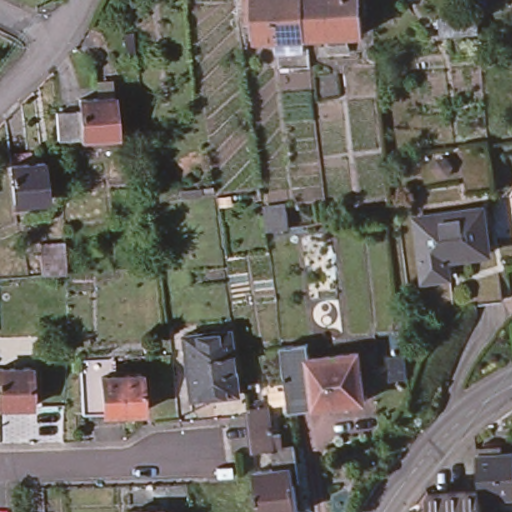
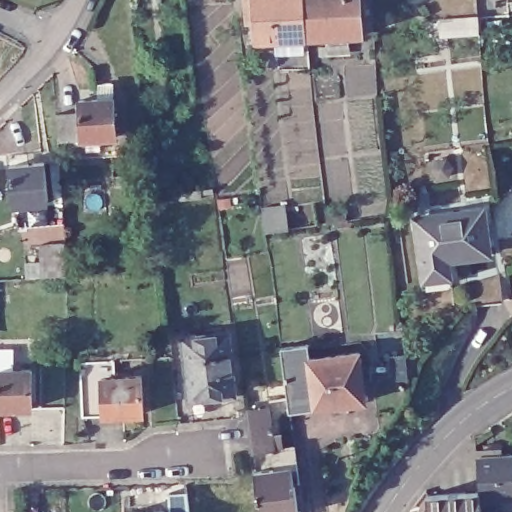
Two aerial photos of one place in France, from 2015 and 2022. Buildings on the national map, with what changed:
unchanged [(260,43),(256,0),(306,0),(308,30),(309,40),(260,43)]
unchanged [(308,30),(306,0),(359,0),(362,35),(309,40),(308,30)]
unchanged [(480,0),(512,0),(512,5),(480,8),(480,0)]
unchanged [(82,101),(116,100),(118,139),(83,140),(60,142),(57,115),(82,114),(82,101)]
unchanged [(48,161),(50,202),(16,205),(13,164),(48,161)]
unchanged [(487,207),(493,250),(450,256),(453,273),(425,276),(417,217),(487,207)]
unchanged [(494,271),(497,298),(470,303),(467,276),(494,271)]
unchanged [(232,333),(240,393),(195,399),(187,341),(232,333)]
unchanged [(308,376),(306,359),(356,351),(363,398),(312,406),(288,410),(284,379),(308,376)]
unchanged [(36,367),(37,405),(2,405),(2,368),(36,367)]
unchanged [(115,385),(117,420),(95,422),(92,371),(127,368),(128,383),(115,385)]
unchanged [(155,381),(155,418),(117,420),(115,385),(128,383),(155,381)]
unchanged [(251,448),(247,425),(247,417),(245,406),(250,405),(266,403),(269,422),(270,434),(279,432),(281,442),(293,440),(297,467),(290,468),(290,463),(273,465),(271,446),(251,448)]
unchanged [(511,500),(510,494),(479,497),(478,490),(475,455),(512,451),(512,500),(511,500)]
unchanged [(253,468),(273,465),(290,463),(290,468),(295,509),(292,510),(292,512),(260,512),(255,478),(253,468)]
unchanged [(478,490),(479,497),(480,512),(428,512),(427,495),(478,490)]

